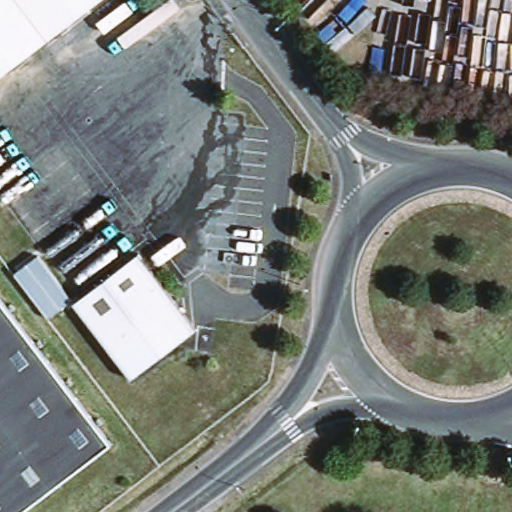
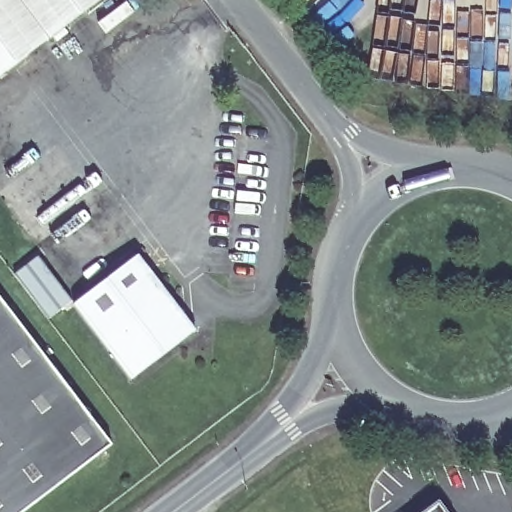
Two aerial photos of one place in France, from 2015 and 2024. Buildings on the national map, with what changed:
unchanged [(0,0),(103,0),(0,77),(0,0)]
unchanged [(73,297),(47,317),(12,273),(39,253),(73,297)]
unchanged [(193,328),(185,349),(133,386),(80,311),(145,260),(193,328)]
unchanged [(30,512),(0,512),(0,295),(115,448),(30,512)]
new [(438,501),(446,512),(423,512),(438,501)]

